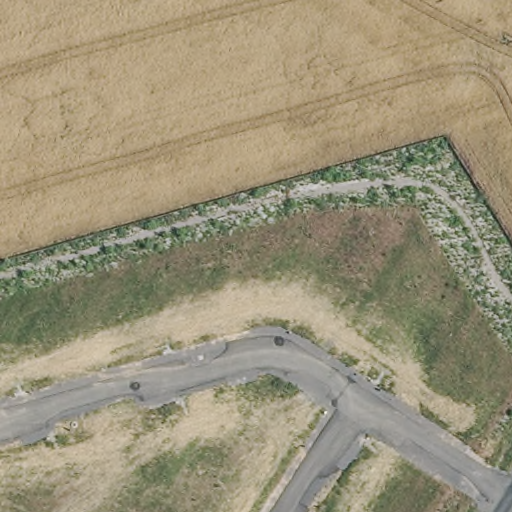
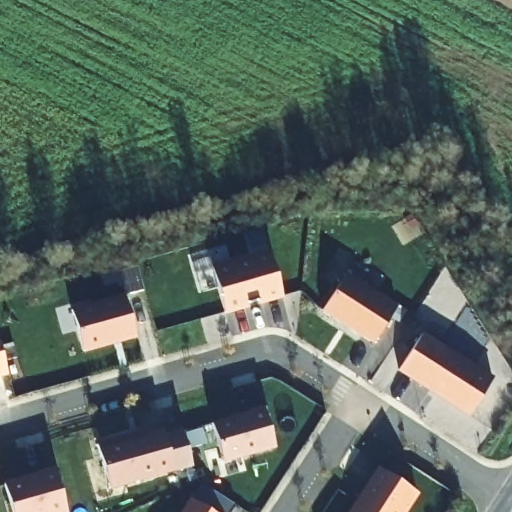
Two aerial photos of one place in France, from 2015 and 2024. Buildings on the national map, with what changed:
new [(272,253),(287,300),(230,313),(217,269),(272,253)]
new [(125,274),(138,271),(145,294),(132,297),(125,274)]
new [(400,310),(373,347),(324,312),(351,277),(400,310)]
new [(125,299),(137,340),(84,355),(72,314),(125,299)]
new [(497,382),(471,419),(399,372),(425,334),(497,382)]
new [(268,410),(280,449),(227,464),(215,425),(268,410)]
new [(165,433),(183,429),(183,431),(202,427),(207,443),(187,449),(192,467),(176,473),(165,433)]
new [(99,448),(130,439),(131,443),(165,433),(176,473),(111,491),(99,448)]
new [(418,494),(407,512),(352,512),(379,469),(418,494)]
new [(41,477),(40,476),(56,471),(68,512),(13,512),(6,487),(41,477)]
new [(186,512),(193,502),(209,512),(186,512)]

